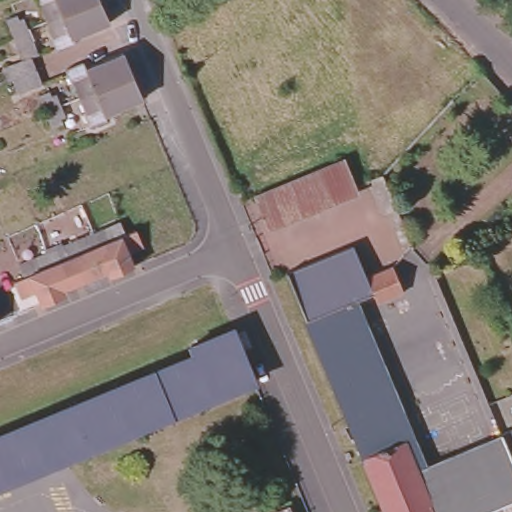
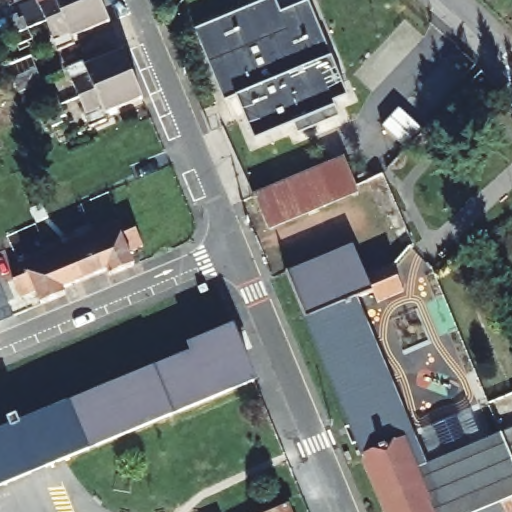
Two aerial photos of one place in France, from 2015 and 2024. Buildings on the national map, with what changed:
unchanged [(57,15),(50,0),(46,2),(45,0),(93,0),(57,15)]
unchanged [(82,34),(85,40),(67,49),(60,33),(63,32),(57,15),(93,0),(113,0),(120,17),(82,34)]
new [(225,102),(195,31),(270,0),(276,0),(281,14),(309,2),(349,98),(335,104),(340,118),(298,135),(294,126),(255,142),(242,112),(237,97),(225,102)]
unchanged [(32,40),(34,44),(24,49),(17,33),(10,17),(20,12),(22,17),(27,15),(32,26),(37,38),(32,40)]
unchanged [(142,70),(89,92),(82,78),(79,79),(73,65),(92,57),(95,64),(132,48),(142,70)]
unchanged [(117,116),(97,124),(92,110),(95,109),(89,92),(142,70),(152,94),(115,110),(117,116)]
unchanged [(65,117),(67,121),(55,126),(49,110),(42,95),(54,90),(55,94),(60,93),(64,104),(69,115),(65,117)]
new [(400,109),(422,130),(405,148),(383,127),(400,109)]
unchanged [(254,228),(241,194),(332,163),(342,192),(344,198),(254,228)]
unchanged [(91,247),(119,235),(125,249),(135,245),(142,260),(127,267),(132,280),(109,290),(105,283),(91,247)]
unchanged [(405,278),(357,298),(311,317),(306,319),(287,274),(354,246),(364,271),(397,259),(405,277),(405,278)]
unchanged [(63,258),(91,247),(105,283),(62,302),(47,265),(45,260),(60,254),(63,258)]
unchanged [(42,317),(37,304),(22,309),(16,294),(27,289),(21,276),(47,265),(62,302),(65,308),(42,317)]
unchanged [(311,317),(357,298),(425,465),(502,434),(501,433),(512,428),(512,451),(509,453),(512,460),(512,512),(504,512),(386,512),(306,319),(311,317)]
unchanged [(0,491),(0,438),(45,419),(95,399),(194,358),(190,350),(228,334),(234,332),(255,385),(0,491)]

